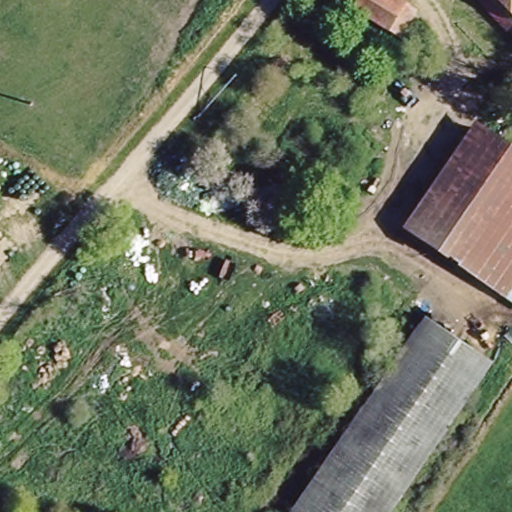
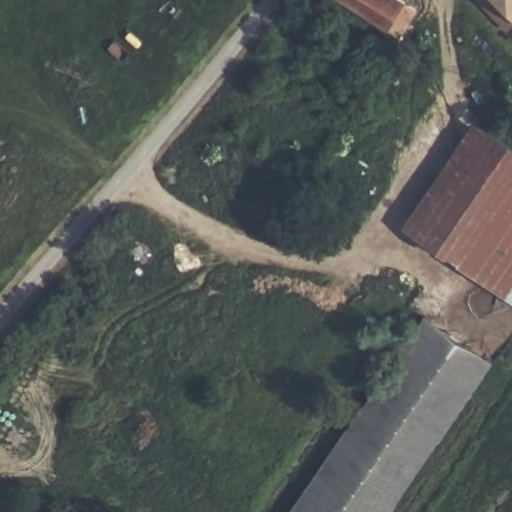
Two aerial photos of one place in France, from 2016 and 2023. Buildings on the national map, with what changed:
unchanged [(415,9),(396,43),(328,0),(400,0),(415,9)]
unchanged [(501,37),(464,0),(512,0),(512,27),(501,37)]
unchanged [(468,117),(512,148),(512,311),(391,230),(468,117)]
unchanged [(490,362),(390,512),(288,512),(419,316),(490,362)]

